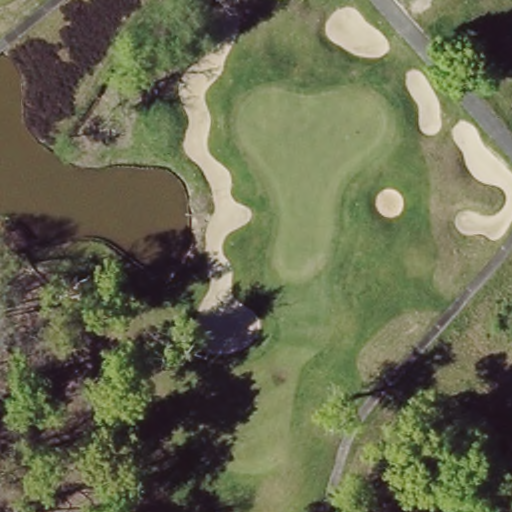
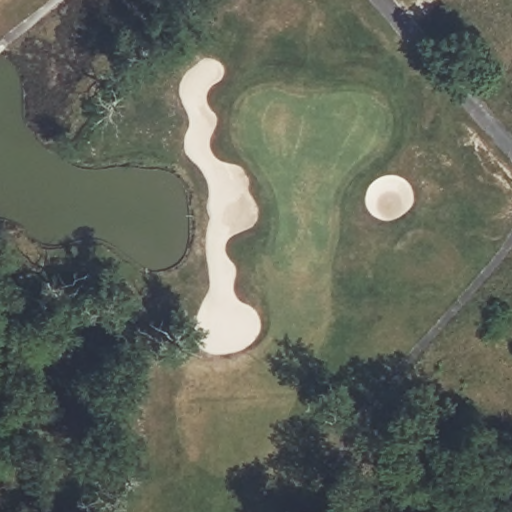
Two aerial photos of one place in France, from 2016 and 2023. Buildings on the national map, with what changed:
[]

